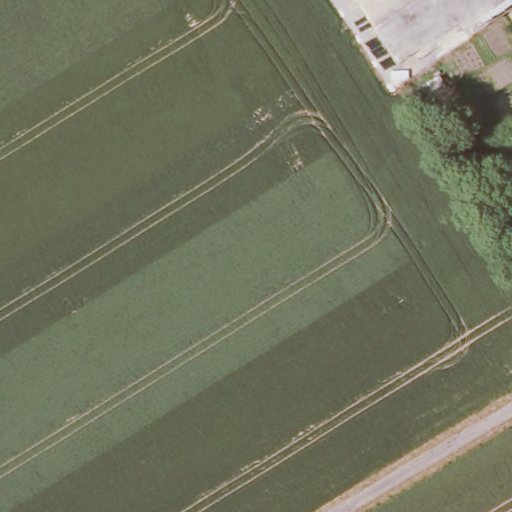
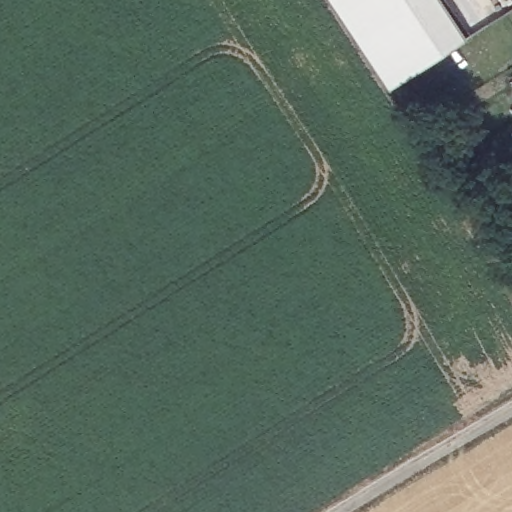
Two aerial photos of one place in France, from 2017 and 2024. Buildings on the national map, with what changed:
new [(441,0),(466,37),(391,88),(332,0),(441,0)]
demolished [(403,75),(351,0),(466,0),(482,24),(403,75)]

